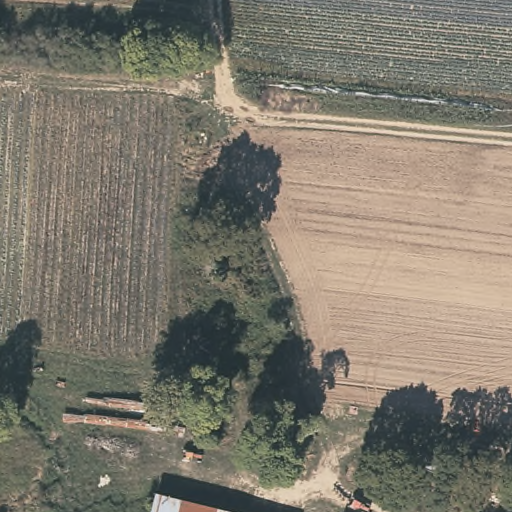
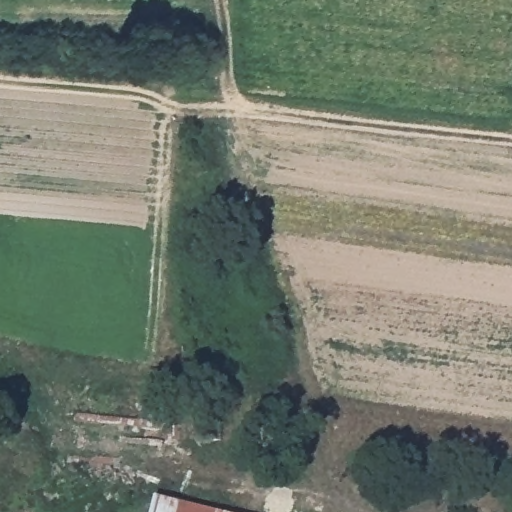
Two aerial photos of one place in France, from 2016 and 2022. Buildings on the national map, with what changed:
unchanged [(225,442),(204,442),(205,410),(225,411),(225,442)]
unchanged [(160,488),(253,512),(153,512),(160,488)]

